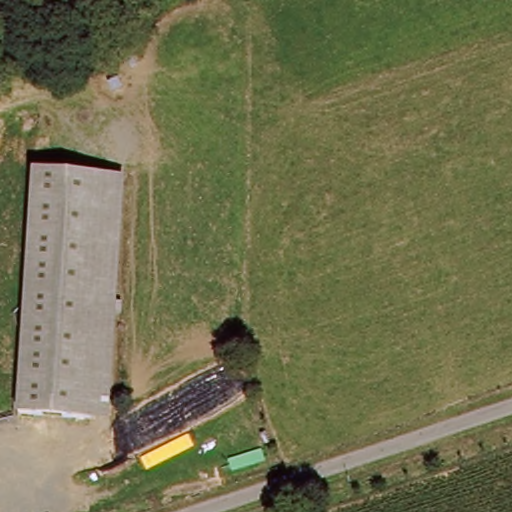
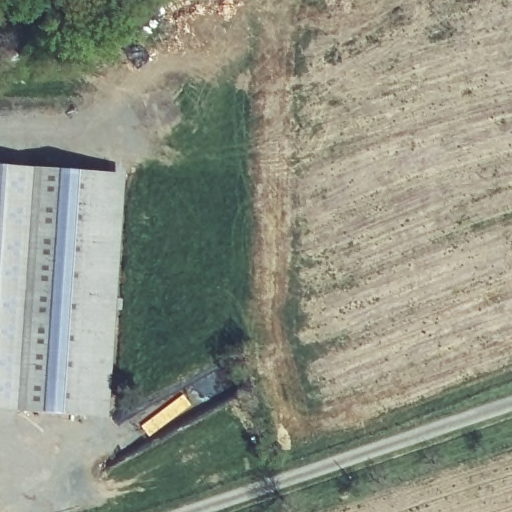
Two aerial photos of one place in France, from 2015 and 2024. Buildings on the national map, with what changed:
new [(50,167),(30,409),(0,408),(0,164),(50,167)]
unchanged [(30,409),(50,167),(117,171),(102,396),(100,414),(48,410),(30,409)]

